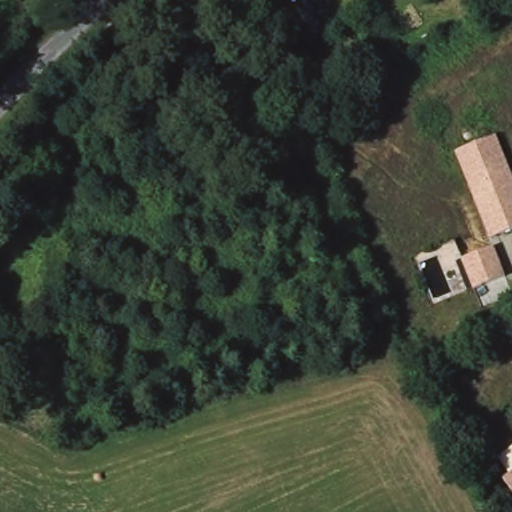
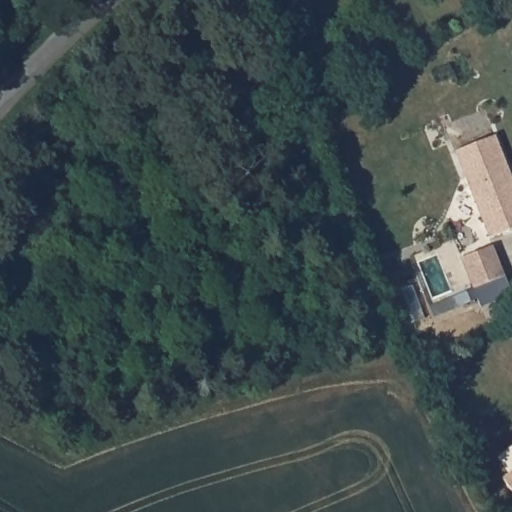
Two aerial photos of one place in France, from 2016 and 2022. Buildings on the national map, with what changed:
unchanged [(276,16),(271,0),(293,0),(295,9),(276,16)]
unchanged [(512,177),(512,229),(488,239),(504,275),(472,286),(453,240),(468,235),(452,198),(470,191),(455,151),(495,135),(512,177)]
unchanged [(495,466),(512,452),(512,487),(495,466)]

